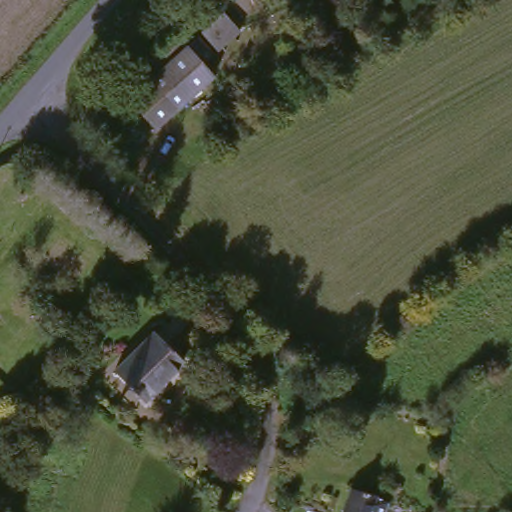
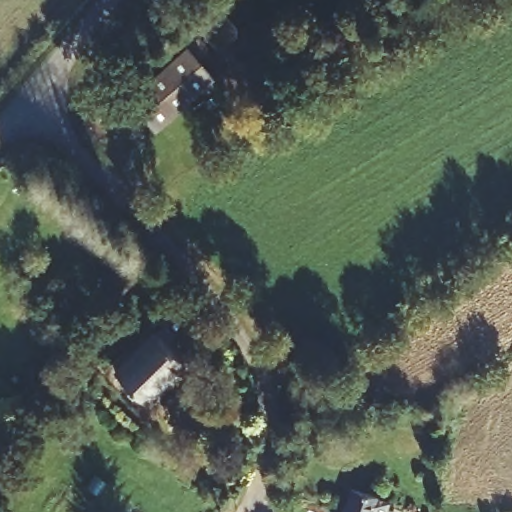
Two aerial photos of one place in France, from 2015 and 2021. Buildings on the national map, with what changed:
unchanged [(207,70),(219,77),(152,136),(119,107),(209,19),(232,38),(207,70)]
unchanged [(114,376),(152,335),(185,367),(145,407),(114,376)]
unchanged [(346,495),(385,511),(385,512),(339,512),(342,504),(346,495)]

